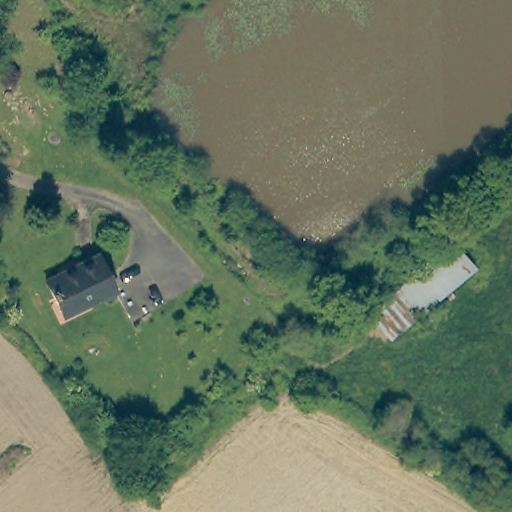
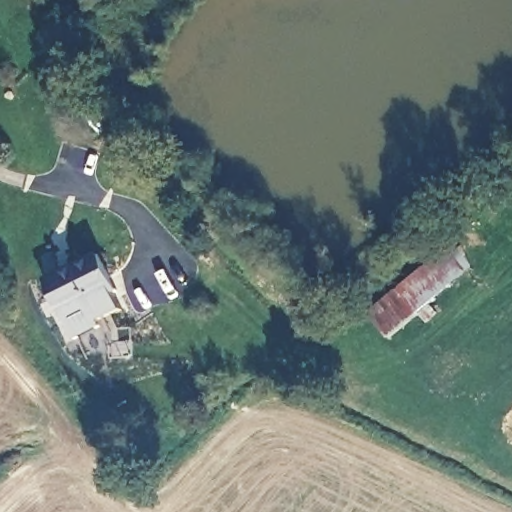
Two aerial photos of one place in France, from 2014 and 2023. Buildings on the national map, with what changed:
unchanged [(455,239),(474,263),(389,335),(365,310),(455,239)]
unchanged [(120,288),(71,314),(52,278),(101,252),(120,288)]

